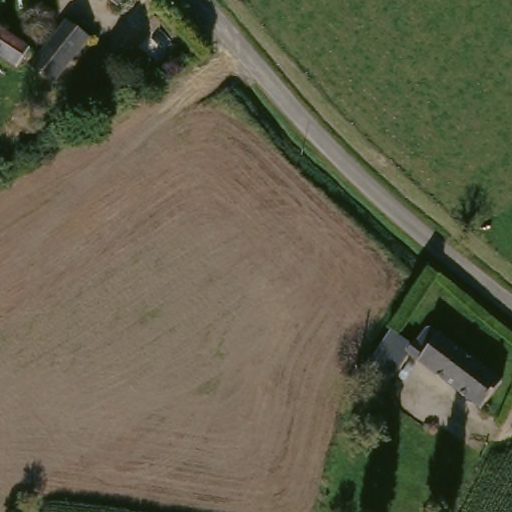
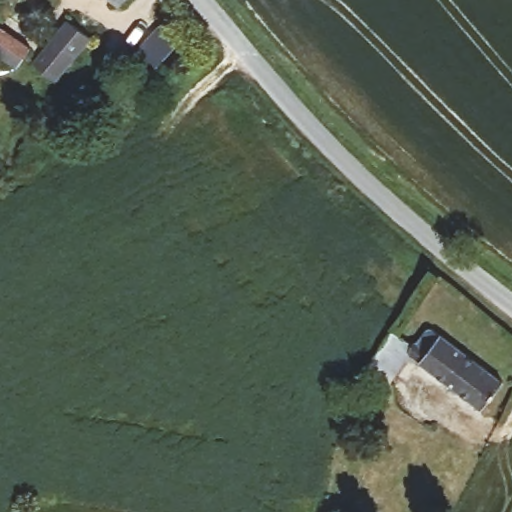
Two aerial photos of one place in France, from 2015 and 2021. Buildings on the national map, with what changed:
unchanged [(109,0),(116,0),(113,3),(109,0)]
unchanged [(89,38),(53,90),(23,64),(9,81),(0,73),(0,24),(26,49),(56,11),(89,38)]
unchanged [(437,326),(503,376),(475,415),(413,363),(437,326)]

